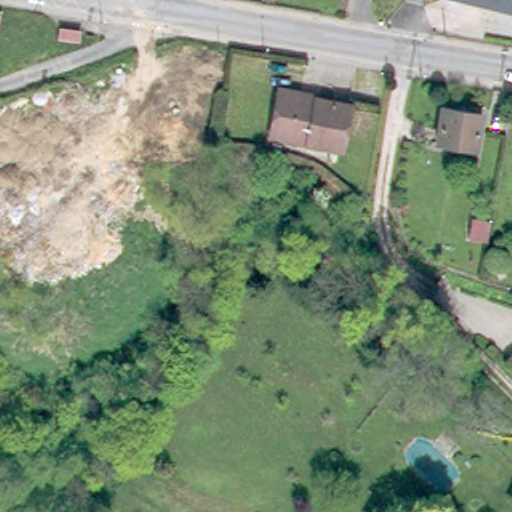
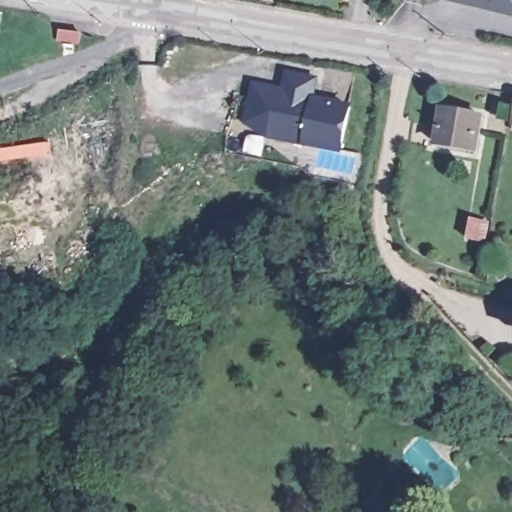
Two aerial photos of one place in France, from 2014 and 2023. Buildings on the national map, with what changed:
unchanged [(458,0),(512,0),(512,13),(458,0)]
unchanged [(272,129),(270,127),(271,124),(278,84),(316,92),(316,95),(350,101),(341,145),(307,138),(277,132),(272,129)]
unchanged [(481,109),(475,144),(438,137),(443,103),(481,109)]
unchanged [(473,217),(486,220),(482,240),(469,236),(473,217)]

